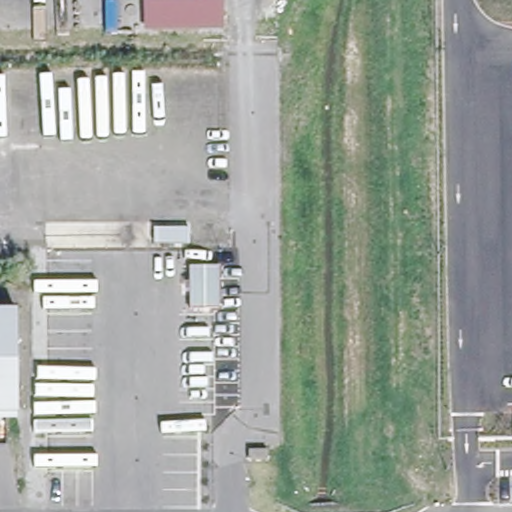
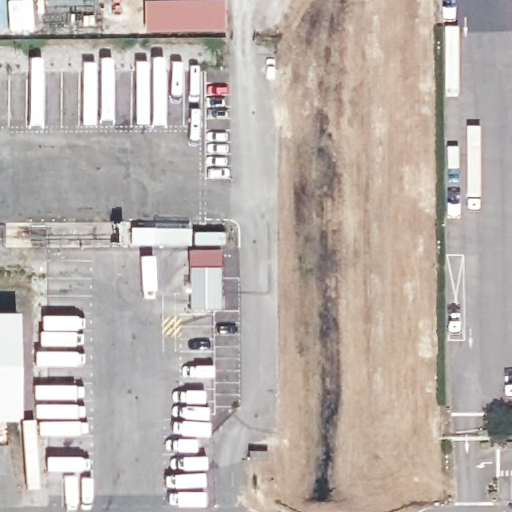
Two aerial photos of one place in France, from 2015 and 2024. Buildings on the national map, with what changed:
unchanged [(146,5),(221,5),(221,30),(146,30),(146,5)]
unchanged [(220,266),(220,308),(190,308),(190,266),(220,266)]
unchanged [(23,413),(0,413),(0,310),(23,310),(23,413)]

